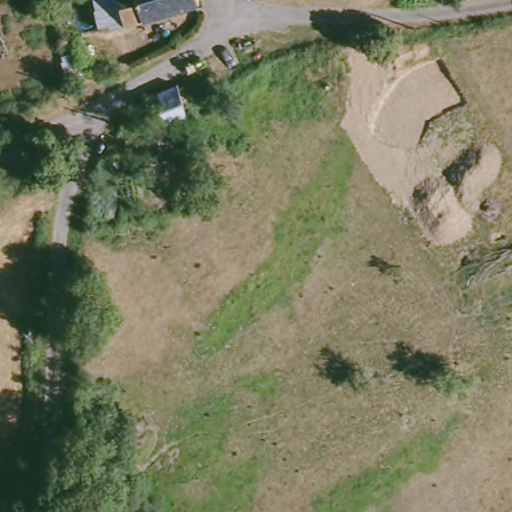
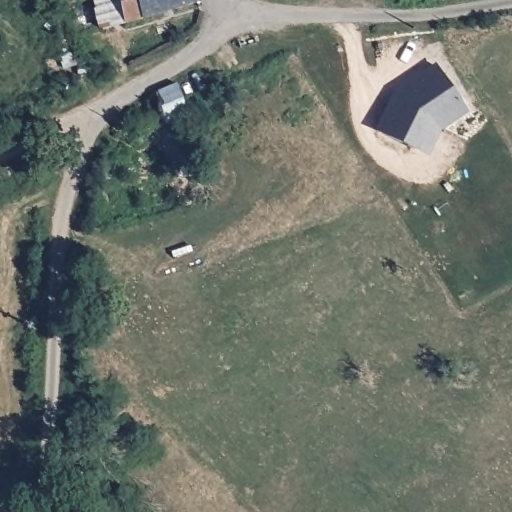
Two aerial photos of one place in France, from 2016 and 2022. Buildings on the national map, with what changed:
unchanged [(107,30),(94,0),(202,0),(107,30)]
new [(440,132),(429,157),(376,129),(398,88),(436,64),(469,112),(440,132)]
unchanged [(187,121),(141,134),(136,114),(149,110),(147,102),(159,99),(157,93),(178,86),(187,121)]

